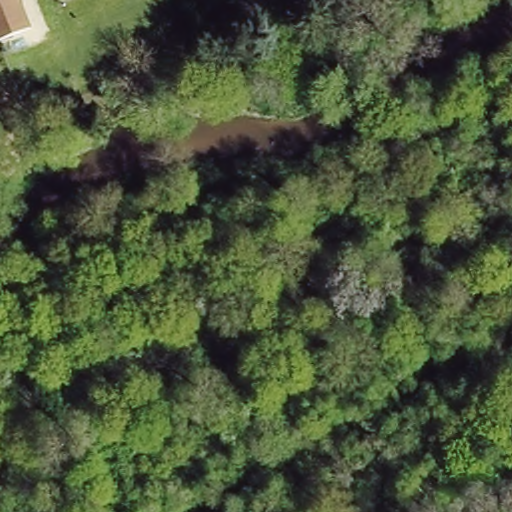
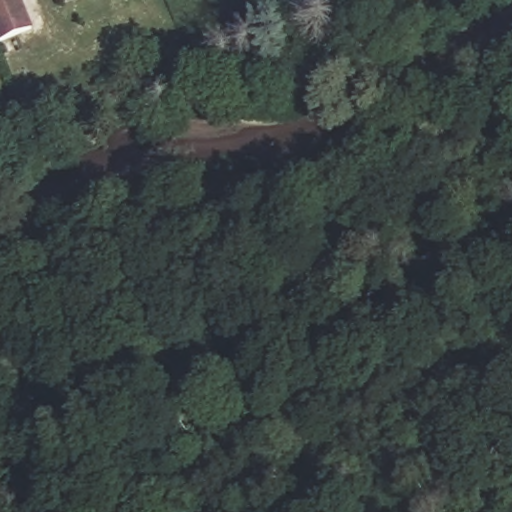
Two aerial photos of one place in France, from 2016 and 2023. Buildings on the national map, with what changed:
unchanged [(34,29),(0,43),(0,0),(23,0),(34,29)]

